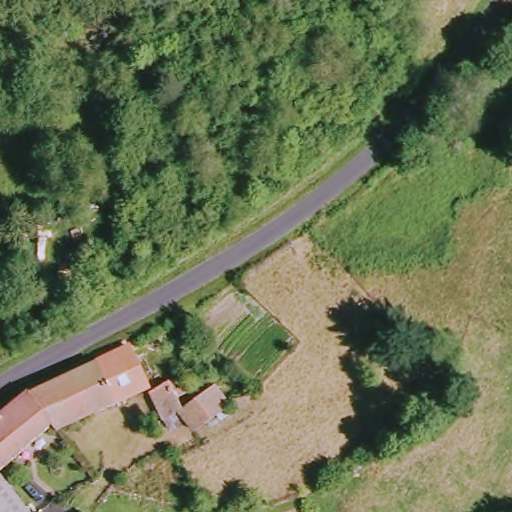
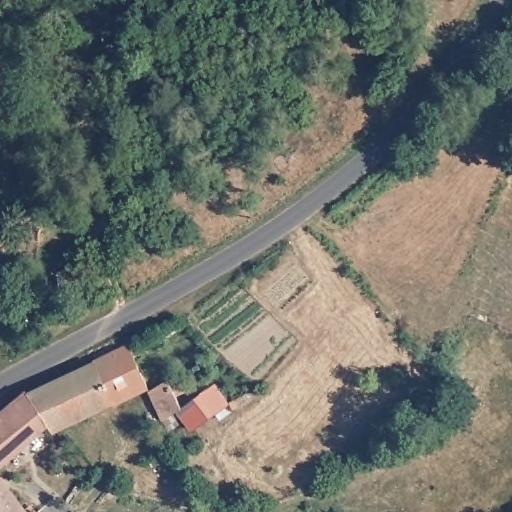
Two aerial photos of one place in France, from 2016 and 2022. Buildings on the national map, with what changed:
unchanged [(155,386),(122,402),(100,360),(134,345),(155,386)]
unchanged [(122,402),(62,432),(56,423),(40,390),(100,360),(122,402)]
unchanged [(158,395),(175,383),(190,411),(174,424),(158,395)]
unchanged [(220,385),(233,405),(201,430),(190,411),(220,385)]
unchanged [(56,423),(5,472),(35,512),(5,512),(0,505),(0,415),(15,401),(40,390),(56,423)]
unchanged [(5,512),(0,512),(0,505),(5,512)]

